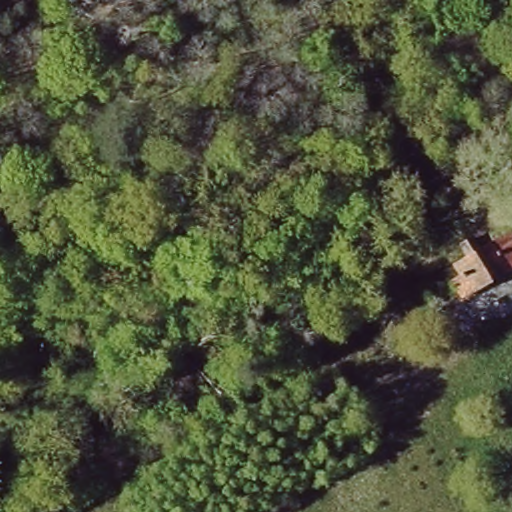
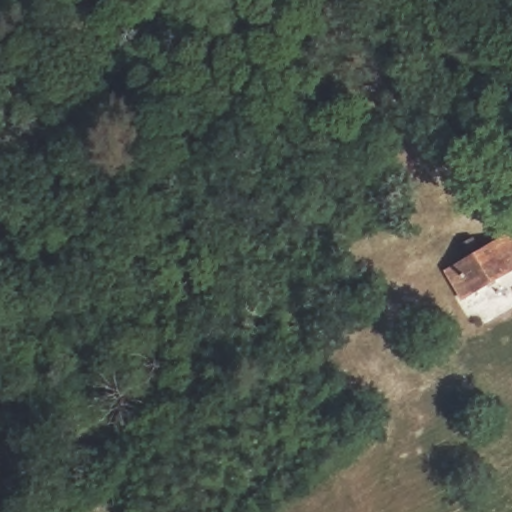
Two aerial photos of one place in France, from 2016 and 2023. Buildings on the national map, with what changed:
unchanged [(449,268),(512,231),(512,275),(463,301),(449,268)]

